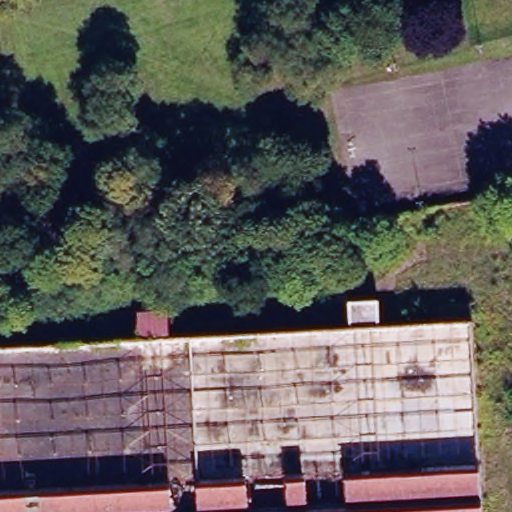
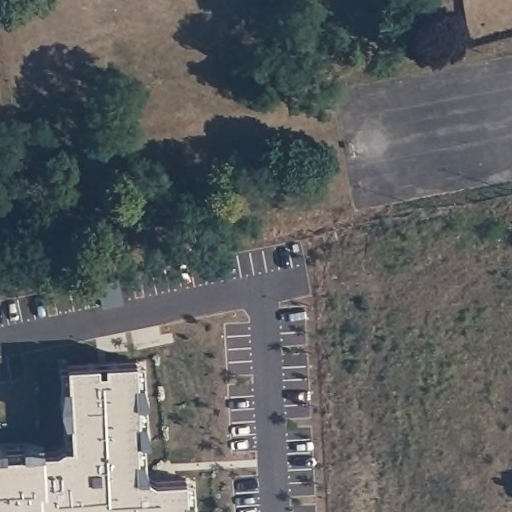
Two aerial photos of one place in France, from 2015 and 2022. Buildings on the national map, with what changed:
demolished [(22,276),(20,259),(30,257),(33,273),(22,276)]
demolished [(163,318),(165,348),(183,347),(183,323),(195,322),(196,346),(328,340),(326,310),(374,307),(377,337),(418,335),(418,305),(466,303),(472,512),(0,512),(0,356),(136,350),(135,320),(163,318)]
new [(41,453),(58,451),(65,446),(60,367),(70,366),(69,363),(136,361),(137,383),(143,382),(147,400),(139,400),(139,421),(145,421),(147,439),(137,439),(138,458),(144,457),(147,476),(155,481),(186,478),(186,482),(193,481),(193,512),(0,512),(0,449),(38,447),(41,453)]

